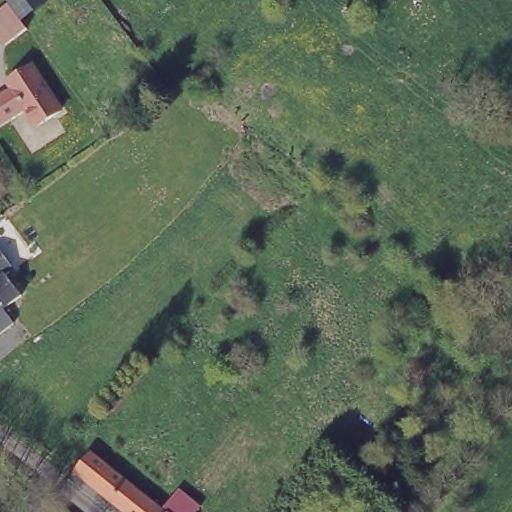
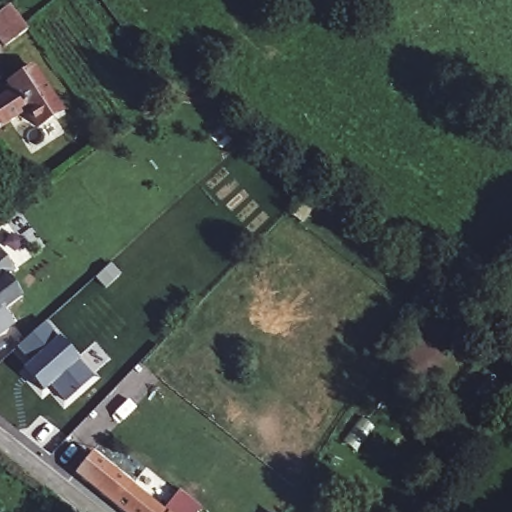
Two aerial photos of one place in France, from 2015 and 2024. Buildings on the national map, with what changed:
demolished [(23,17),(10,0),(47,0),(23,17)]
unchanged [(30,29),(0,47),(0,10),(12,1),(23,17),(30,29)]
unchanged [(6,79),(30,63),(62,112),(36,128),(22,112),(27,109),(11,86),(6,79)]
unchanged [(11,86),(27,109),(0,130),(0,95),(9,88),(11,86)]
unchanged [(10,269),(25,290),(14,298),(0,283),(0,240),(17,262),(10,269)]
unchanged [(7,304),(17,317),(0,330),(0,283),(14,298),(7,304)]
new [(49,387),(42,394),(21,369),(28,364),(15,349),(43,324),(57,338),(77,361),(92,378),(63,403),(49,387)]
unchanged [(172,489),(177,484),(198,500),(194,505),(189,512),(119,512),(70,472),(88,449),(160,505),(172,489)]

